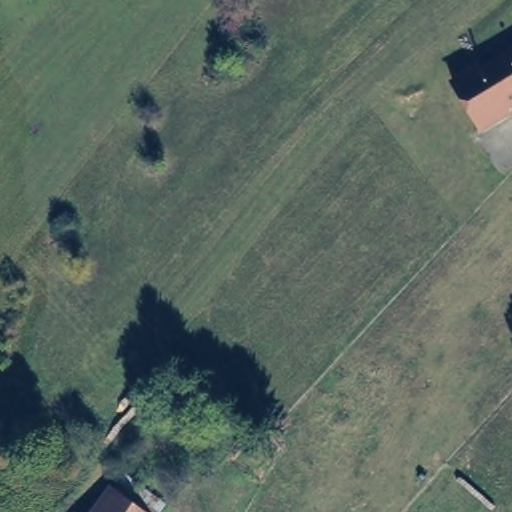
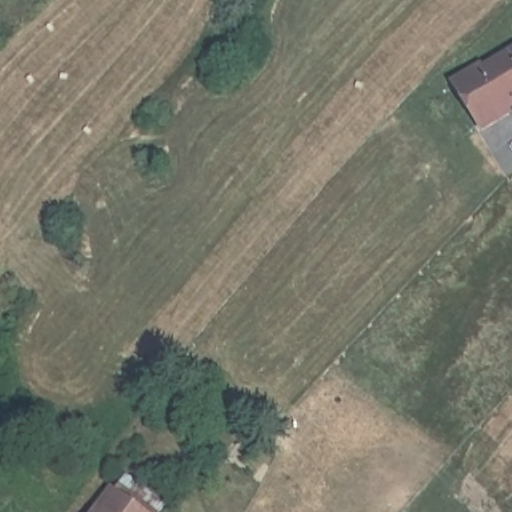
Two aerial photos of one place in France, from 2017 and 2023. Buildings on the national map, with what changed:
unchanged [(482,67),(486,74),(512,56),(512,104),(507,108),(509,112),(483,130),(456,84),(482,67)]
unchanged [(117,493),(142,512),(102,512),(117,493)]

